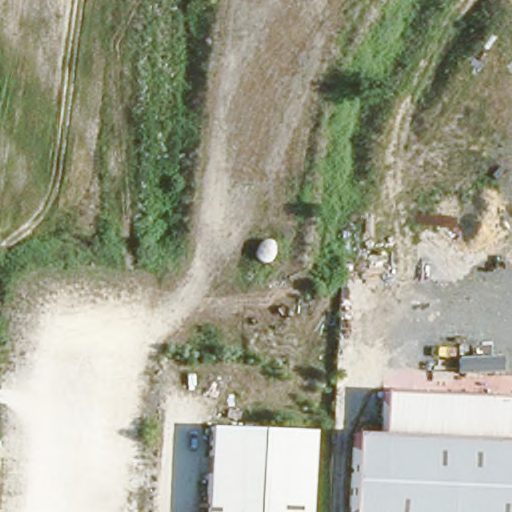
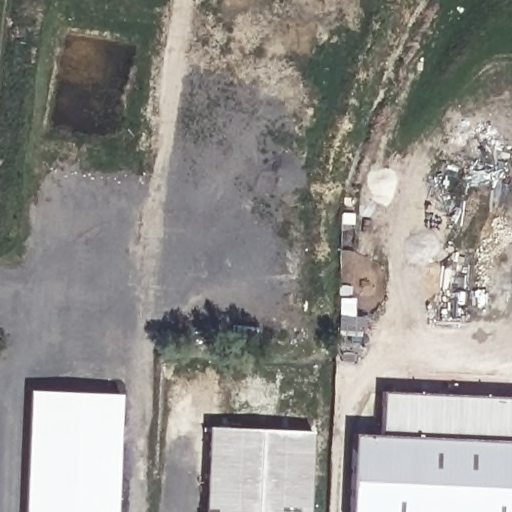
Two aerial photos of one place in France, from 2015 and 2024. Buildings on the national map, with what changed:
new [(124,512),(36,512),(40,393),(128,396),(124,512)]
unchanged [(385,394),(512,398),(512,440),(383,434),(385,394)]
unchanged [(307,430),(305,512),(203,512),(206,427),(307,430)]
unchanged [(355,433),(383,434),(512,440),(512,512),(350,512),(355,433)]

